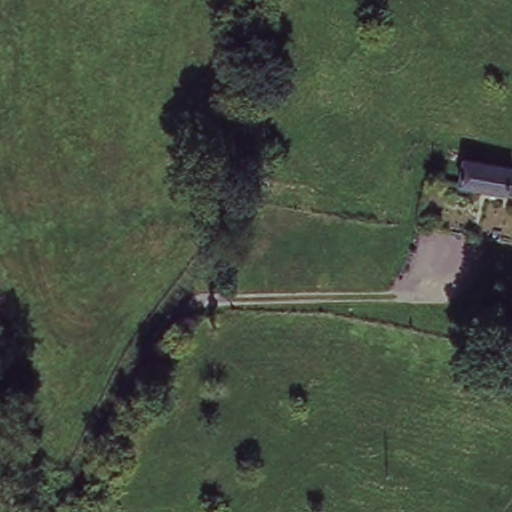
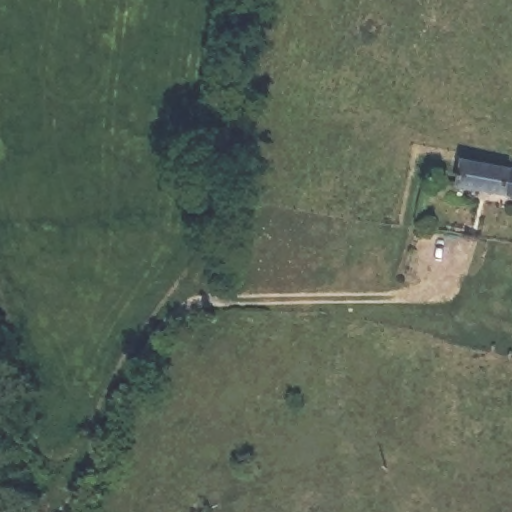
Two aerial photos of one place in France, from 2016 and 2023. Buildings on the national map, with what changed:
unchanged [(512,167),(512,189),(461,181),(464,160),(512,167)]
unchanged [(0,509),(0,478),(1,509),(0,509)]

